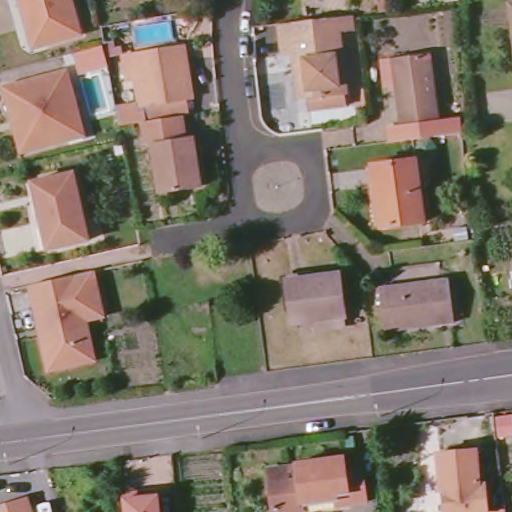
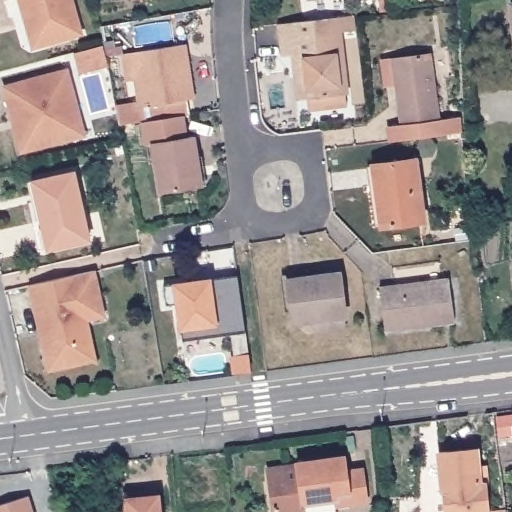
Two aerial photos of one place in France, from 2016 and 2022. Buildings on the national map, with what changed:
unchanged [(69,0),(78,32),(43,42),(30,46),(17,0),(69,0)]
unchanged [(512,4),(512,12),(511,5),(512,4)]
unchanged [(304,127),(302,115),(295,116),(291,87),(288,72),(280,72),(277,56),(275,41),(275,40),(325,34),(331,34),(350,31),(351,45),(333,47),(341,110),(339,110),(341,122),(304,127)]
unchanged [(395,106),(390,65),(380,67),(376,40),(385,39),(427,33),(435,100),(455,97),(457,112),(385,122),(383,107),(395,106)]
unchanged [(192,137),(200,188),(161,194),(153,145),(147,146),(144,122),(120,126),(116,110),(143,106),(140,81),(126,84),(122,56),(135,53),(184,45),(192,100),(185,101),(188,116),(181,117),(184,139),(192,137)]
unchanged [(85,54),(98,51),(102,64),(88,67),(85,54)]
unchanged [(64,137),(17,150),(11,126),(15,125),(13,117),(9,119),(0,85),(63,68),(77,120),(80,132),(64,137)]
unchanged [(380,207),(378,196),(374,166),(415,159),(424,221),(382,227),(380,207)]
unchanged [(31,224),(41,222),(32,183),(73,173),(90,240),(48,250),(38,252),(31,224)]
unchanged [(50,374),(48,367),(41,335),(47,334),(45,327),(40,328),(31,287),(95,272),(105,318),(87,322),(92,346),(96,363),(50,374)]
unchanged [(315,332),(314,321),(292,323),(287,282),(340,275),(345,317),(346,327),(315,332)]
new [(238,277),(246,334),(182,343),(177,306),(166,307),(163,287),(238,277)]
unchanged [(379,289),(449,281),(455,323),(384,332),(379,289)]
unchanged [(441,471),(436,472),(433,447),(470,445),(472,479),(457,481),(442,482),(441,471)]
unchanged [(266,484),(262,460),(292,456),(292,453),(338,448),(340,463),(357,462),(361,492),(331,496),(331,490),(298,494),(299,501),(268,505),(266,484)]
unchanged [(488,507),(485,507),(440,512),(437,482),(442,482),(457,481),(472,479),(485,478),(488,507)]
unchanged [(159,512),(124,512),(123,499),(123,494),(141,492),(157,491),(159,512)]
unchanged [(27,498),(31,512),(0,512),(0,507),(27,498)]
unchanged [(501,512),(488,512),(488,507),(500,506),(501,512)]

